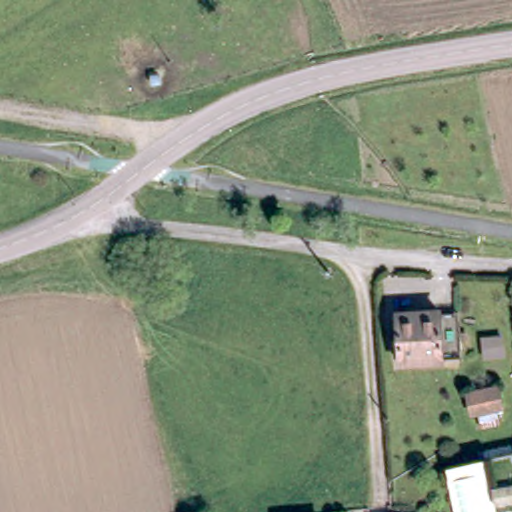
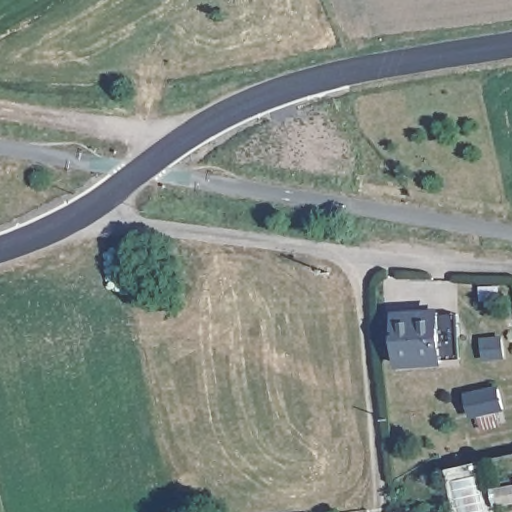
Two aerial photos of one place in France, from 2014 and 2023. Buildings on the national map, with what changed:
unchanged [(442,316),(448,366),(410,371),(406,322),(442,316)]
unchanged [(506,333),(510,352),(493,356),(488,337),(506,333)]
unchanged [(508,412),(478,420),(474,402),(505,395),(508,412)]
unchanged [(512,460),(512,512),(502,512),(491,462),(512,460)]

